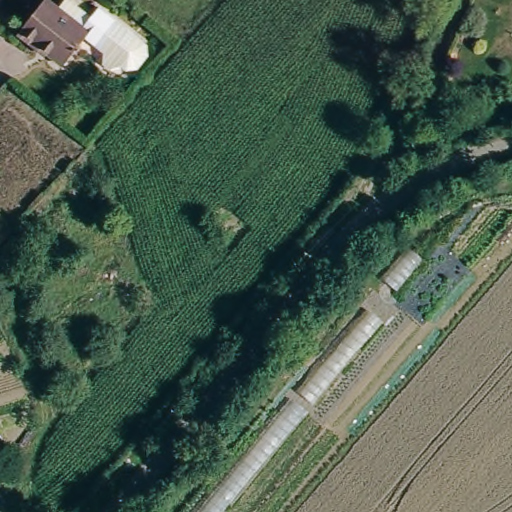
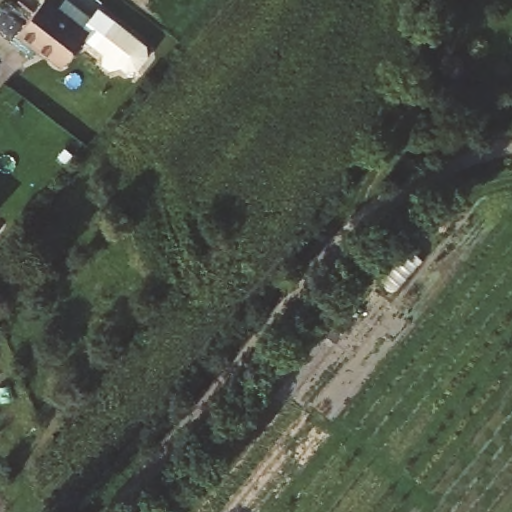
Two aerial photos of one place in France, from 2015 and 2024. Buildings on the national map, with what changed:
unchanged [(83,27),(90,33),(86,37),(65,62),(21,28),(44,0),(50,0),(58,7),(64,0),(70,0),(91,17),(83,27)]
unchanged [(100,7),(143,44),(145,56),(135,69),(122,68),(120,64),(109,68),(100,60),(100,50),(86,37),(90,33),(83,27),(91,17),(100,7)]

